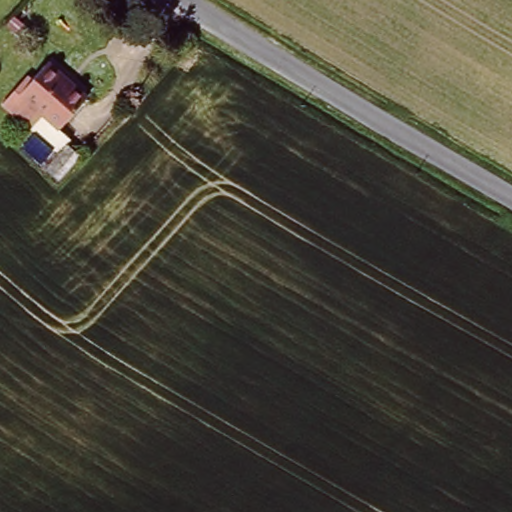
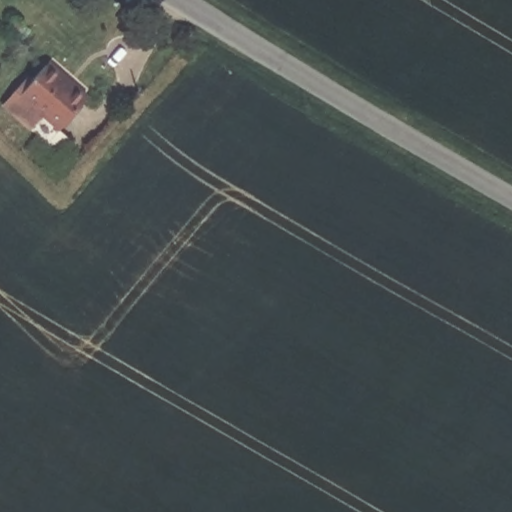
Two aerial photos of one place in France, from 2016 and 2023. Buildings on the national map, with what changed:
unchanged [(68,141),(14,91),(39,64),(43,59),(83,96),(97,109),(68,141)]
unchanged [(66,148),(76,158),(56,180),(46,169),(66,148)]

